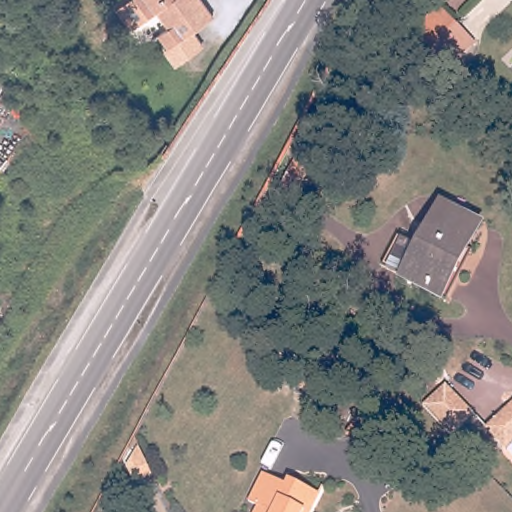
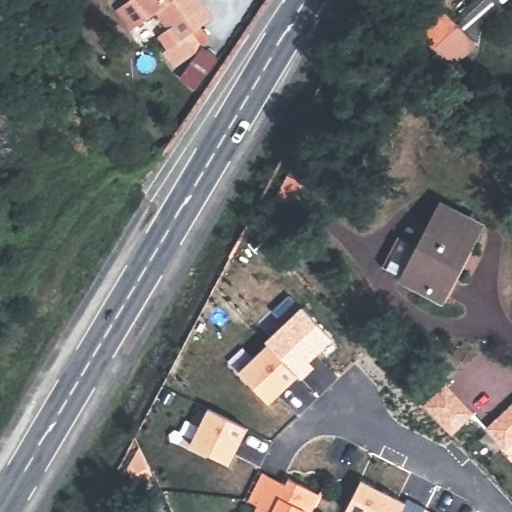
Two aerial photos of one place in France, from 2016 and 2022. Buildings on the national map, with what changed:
unchanged [(171,29),(179,22),(165,4),(141,21),(127,3),(131,0),(215,0),(222,10),(201,25),(214,41),(188,61),(174,45),(180,40),(171,29)]
unchanged [(421,33),(448,7),(466,26),(483,44),(455,69),(439,51),(421,33)]
unchanged [(399,276),(437,204),(470,221),(449,261),(455,265),(439,296),(399,276)]
new [(291,372),(266,346),(264,341),(300,308),(332,338),(312,358),(317,363),(300,380),(296,377),(291,372)]
new [(266,346),(296,377),(267,405),(237,373),(266,346)]
unchanged [(475,414),(453,435),(433,414),(426,406),(447,385),(475,414)]
unchanged [(512,403),(512,441),(506,446),(500,446),(484,428),(512,403)]
new [(227,467),(188,448),(206,412),(245,431),(227,467)]
unchanged [(125,473),(137,450),(151,480),(132,488),(125,473)]
unchanged [(254,505),(248,501),(262,472),(285,484),(288,478),(318,494),(310,512),(261,512),(262,509),(254,505)]
new [(408,505),(405,512),(350,512),(364,482),(408,505)]
new [(431,512),(423,512),(425,508),(431,512)]

